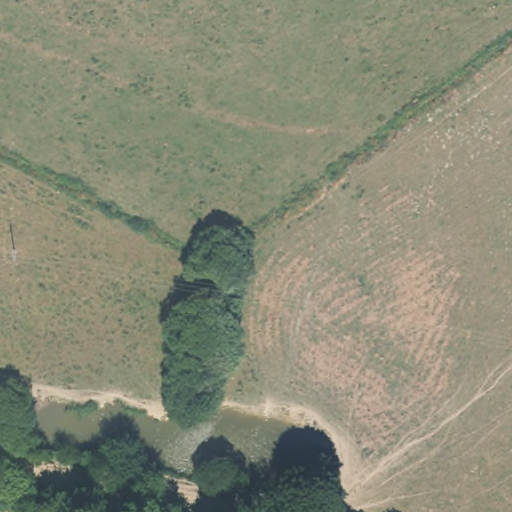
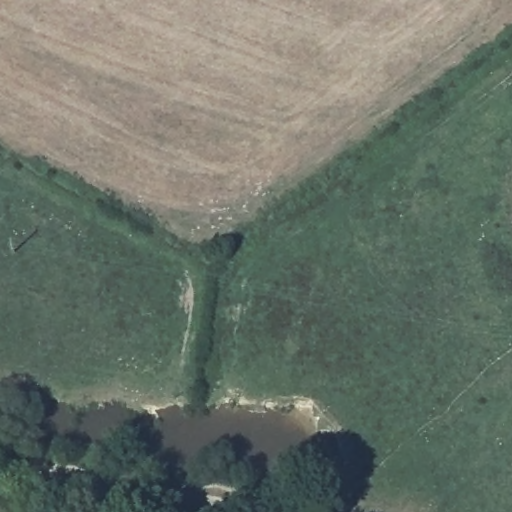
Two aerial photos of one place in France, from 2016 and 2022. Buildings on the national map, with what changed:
[]

